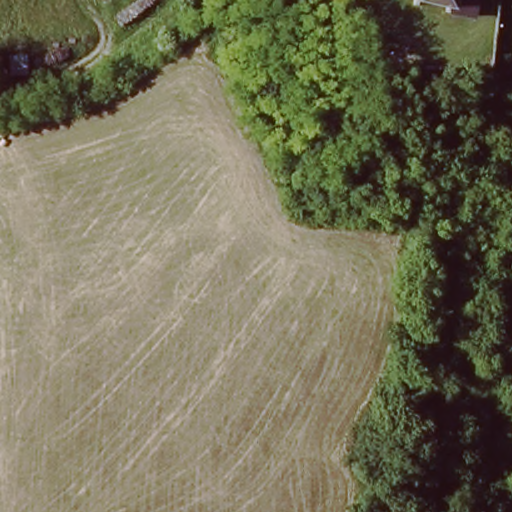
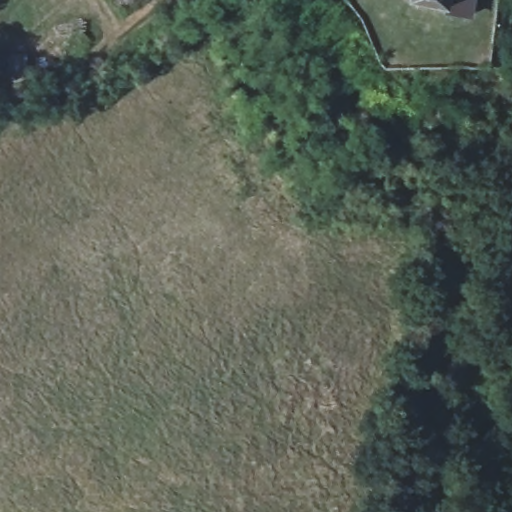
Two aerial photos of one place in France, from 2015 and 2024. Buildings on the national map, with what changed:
unchanged [(414,5),(415,0),(420,0),(419,6),(414,5)]
unchanged [(447,11),(448,5),(423,0),(476,0),(473,16),(447,11)]

